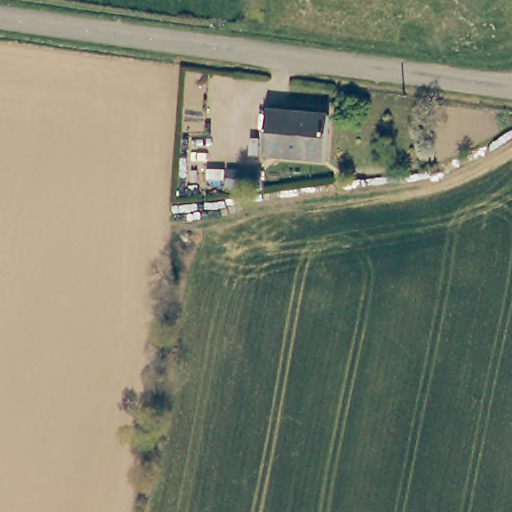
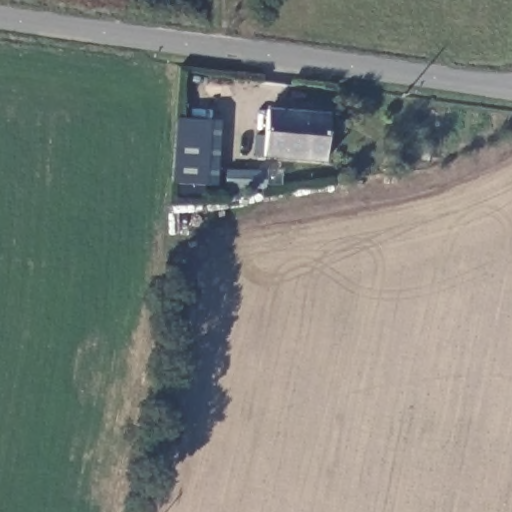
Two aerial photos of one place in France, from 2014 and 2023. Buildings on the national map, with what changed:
unchanged [(330,113),(327,158),(267,154),(271,109),(330,113)]
new [(224,121),(220,187),(206,186),(204,201),(176,199),(177,184),(173,184),(178,118),(224,121)]

